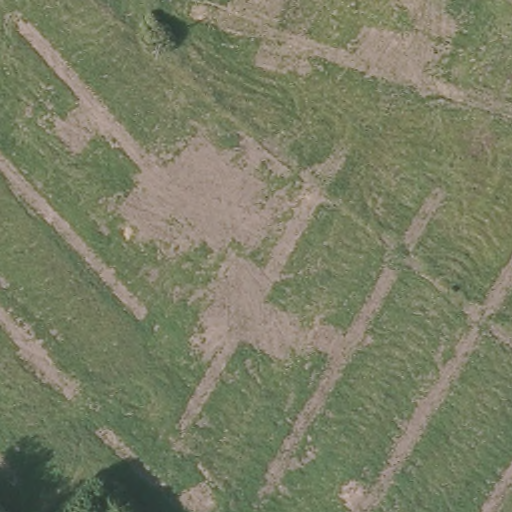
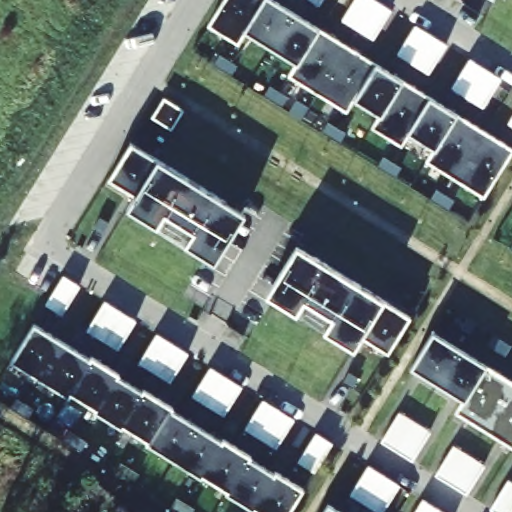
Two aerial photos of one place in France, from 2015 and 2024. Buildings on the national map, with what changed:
new [(224,0),(267,0),(246,33),(239,45),(208,26),(224,0)]
new [(267,0),(273,0),(294,13),(271,49),(246,33),(267,0)]
new [(319,6),(310,0),(323,0),(319,6)]
new [(374,40),(358,30),(342,21),(355,0),(374,0),(376,1),(392,11),(374,40)]
new [(294,13),(319,29),(296,65),(271,49),(294,13)]
new [(429,74),(414,65),(398,55),(416,26),(432,36),(447,46),(429,74)]
new [(296,65),(319,29),(347,47),(317,95),(289,77),(296,65)]
new [(347,47),(377,65),(355,101),(347,113),(317,95),(347,47)]
new [(484,108),(468,99),(452,89),(470,60),(486,70),(501,79),(484,108)]
new [(377,65),(402,81),(380,116),(355,101),(377,65)]
new [(380,116),(402,81),(432,99),(410,135),(402,147),(372,129),(380,116)]
new [(164,98),(184,110),(172,130),(152,117),(164,98)]
new [(432,99),(455,114),(434,150),(410,135),(432,99)]
new [(434,150),(455,114),(485,132),(455,180),(426,162),(434,150)]
new [(512,118),(512,126),(509,124),(512,118)]
new [(485,132),(512,149),(512,154),(484,199),(455,180),(485,132)]
new [(130,142),(157,159),(135,195),(109,179),(130,142)]
new [(135,195),(157,159),(227,202),(205,237),(194,230),(193,232),(165,214),(157,227),(127,208),(135,195)]
new [(157,227),(165,214),(193,232),(194,230),(205,237),(227,202),(245,214),(215,263),(204,257),(185,245),(157,227)]
new [(266,295),(297,246),(315,257),(293,292),(305,300),(304,301),(332,319),(324,331),(296,314),(285,307),(266,295)]
new [(315,257),(385,301),(362,336),(354,350),(324,331),(332,319),(304,301),(305,300),(293,292),(315,257)]
new [(64,276),(80,286),(62,315),(46,305),(64,276)]
new [(118,350),(102,340),(87,330),(105,301),(120,311),(136,321),(118,350)]
new [(385,301),(410,317),(389,353),(362,336),(385,301)]
new [(34,323),(64,342),(40,379),(11,361),(34,323)]
new [(433,332),(460,349),(439,385),(410,368),(433,332)]
new [(170,382),(155,372),(140,363),(157,334),(173,344),(188,353),(170,382)]
new [(64,342),(92,359),(70,395),(69,397),(40,379),(64,342)]
new [(460,349),(487,366),(465,402),(463,401),(439,385),(460,349)]
new [(92,359),(94,357),(118,372),(117,374),(95,410),(70,395),(92,359)]
new [(463,401),(465,402),(487,366),(512,381),(512,386),(484,431),(455,413),(463,401)]
new [(224,416),(209,406),(193,396),(211,368),(227,377),(242,387),(224,416)]
new [(95,410),(117,374),(145,392),(122,427),(121,429),(93,412),(95,410)]
new [(512,386),(512,448),(484,431),(512,386)]
new [(145,392),(145,390),(174,407),(172,409),(150,445),(122,427),(145,392)]
new [(277,448),(261,439),(245,429),(264,400),(279,410),(295,419),(277,448)]
new [(150,445),(172,409),(197,425),(174,462),(149,447),(150,445)]
new [(412,461),(397,451),(382,441),(400,413),(415,422),(430,432),(412,461)]
new [(197,425),(222,441),(200,476),(199,478),(174,462),(197,425)]
new [(317,433),(332,443),(315,472),(299,462),(317,433)]
new [(222,441),(224,438),(250,455),(249,457),(227,493),(200,476),(222,441)]
new [(467,494),(451,484),(436,475),(454,446),(469,456),(485,466),(467,494)]
new [(227,493),(249,457),(277,475),(255,510),(253,512),(225,495),(227,493)]
new [(380,512),(367,504),(351,495),(369,466),(384,475),(400,485),(383,512),(380,512)]
new [(278,472),(304,489),(289,512),(258,512),(255,510),(277,475),(278,472)]
new [(512,483),(512,510),(510,512),(495,512),(490,509),(509,481),(512,483)]
new [(439,509),(443,512),(415,512),(423,500),(439,509)]
new [(342,512),(323,512),(328,504),(342,512)]

